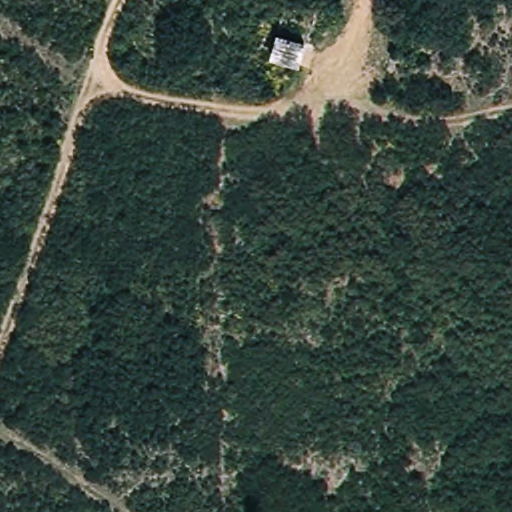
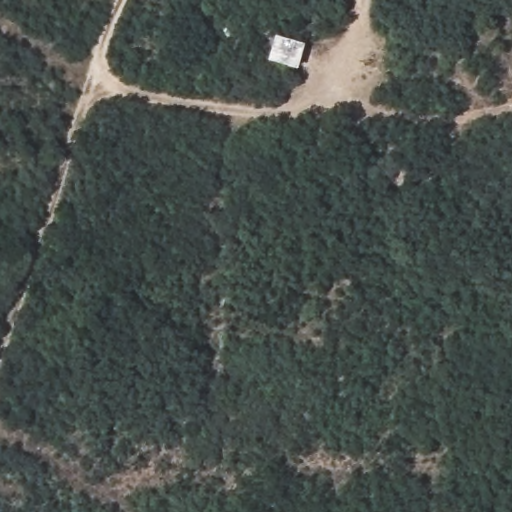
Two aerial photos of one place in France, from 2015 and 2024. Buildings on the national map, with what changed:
unchanged [(303,45),(295,67),(264,57),(270,39),(303,45)]

